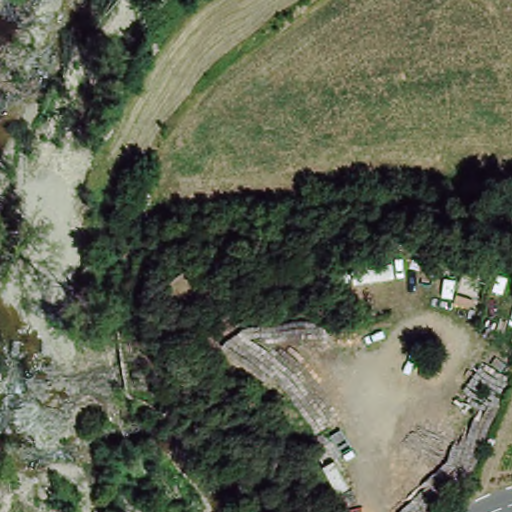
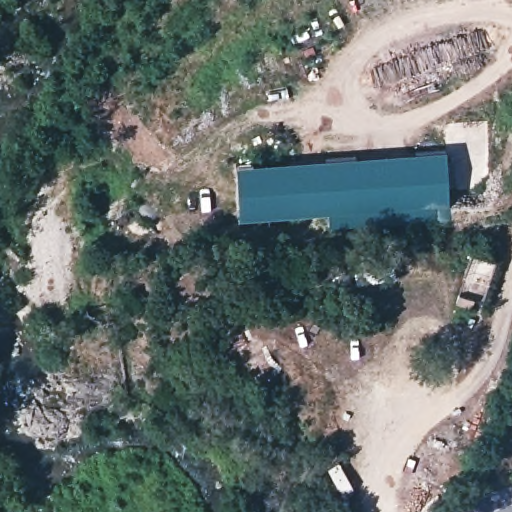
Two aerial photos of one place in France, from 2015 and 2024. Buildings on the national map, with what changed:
new [(451,206),(239,219),(236,165),(446,150),(451,206)]

